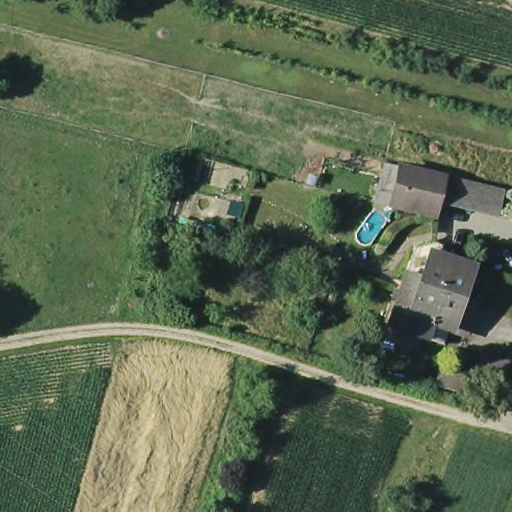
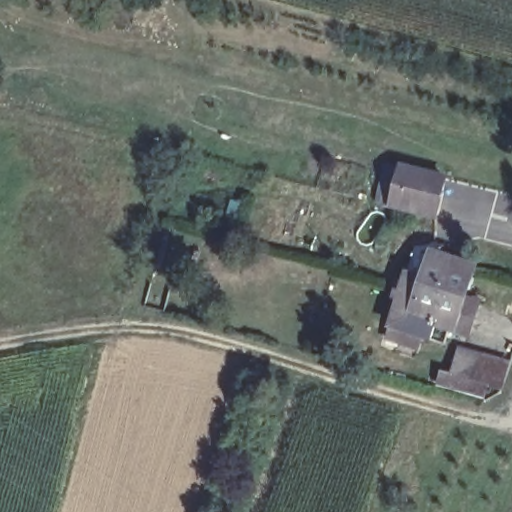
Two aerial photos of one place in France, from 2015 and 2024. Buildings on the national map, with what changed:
unchanged [(448,218),(404,207),(392,204),(405,165),(415,167),(459,179),(448,218)]
unchanged [(426,308),(442,261),(445,247),(489,262),(470,322),(467,321),(426,308)]
unchanged [(462,335),(402,316),(408,300),(423,254),(442,261),(426,308),(467,321),(462,335)]
new [(439,369),(449,372),(457,346),(512,361),(502,394),(492,390),(486,401),(434,385),(439,369)]

